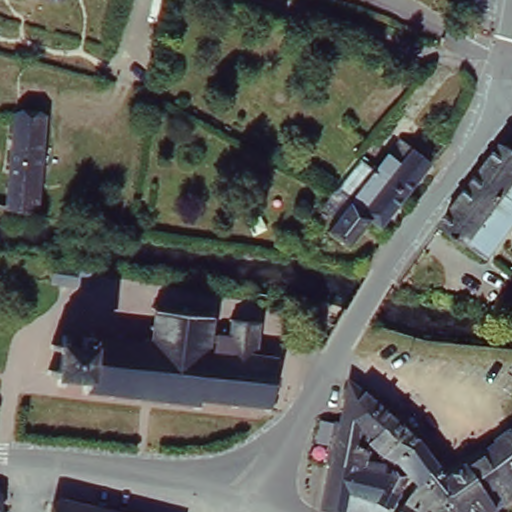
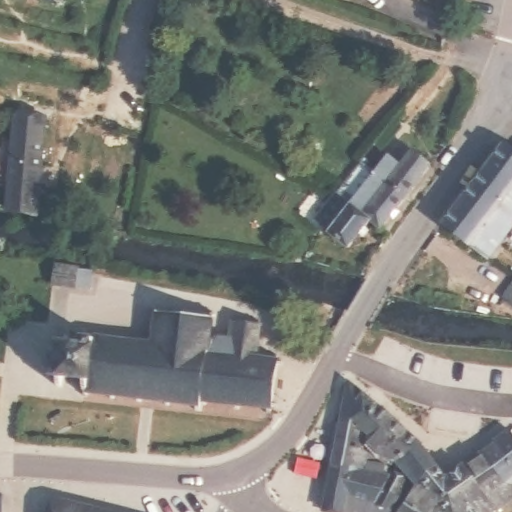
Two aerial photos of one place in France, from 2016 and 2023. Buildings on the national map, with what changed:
unchanged [(11,202),(18,113),(48,115),(41,208),(11,202)]
unchanged [(512,144),(512,217),(486,252),(441,219),(501,139),(512,144)]
unchanged [(390,176),(415,145),(443,168),(419,199),(390,176)]
unchanged [(342,236),(351,226),(335,213),(348,196),(374,163),(390,176),(419,199),(393,232),(383,224),(361,251),(342,236)]
unchanged [(341,222),(338,229),(331,225),(335,218),(341,222)]
unchanged [(91,269),(89,288),(51,282),(53,264),(91,269)]
unchanged [(91,269),(92,264),(104,266),(103,270),(91,269)]
unchanged [(512,279),(512,300),(502,293),(512,279)]
unchanged [(64,350),(54,349),(55,343),(66,345),(67,334),(71,334),(70,345),(87,347),(88,336),(95,337),(96,332),(99,333),(99,338),(121,340),(122,335),(127,335),(126,340),(147,342),(148,337),(152,338),(152,342),(156,344),(157,329),(153,329),(153,324),(157,324),(159,311),(156,307),(159,304),(163,308),(186,311),(187,306),(192,307),(192,311),(212,314),(217,310),(220,314),(216,317),(234,319),(234,317),(237,317),(237,315),(240,316),(240,318),(260,321),(261,318),(264,319),(263,321),(266,321),(266,324),(263,324),(259,357),(276,359),(276,354),(281,354),(281,359),(286,360),(285,364),(280,364),(276,401),(280,403),(279,407),(274,406),(273,411),(268,411),(269,405),(243,402),(241,407),(237,406),(238,401),(210,398),(209,403),(205,403),(204,409),(198,408),(199,401),(173,398),(173,404),(169,403),(169,398),(145,395),(144,400),(139,399),(140,395),(117,392),(117,397),(112,397),(113,392),(91,389),(90,394),(88,394),(88,388),(85,388),(87,378),(66,375),(65,386),(60,385),(61,375),(51,374),(52,368),(62,370),(64,350)]
unchanged [(346,510),(321,503),(330,457),(324,456),(333,415),(338,417),(347,376),(378,402),(392,414),(419,436),(420,437),(395,454),(382,446),(371,434),(363,439),(376,450),(375,456),(383,458),(381,465),(389,467),(405,476),(397,490),(390,503),(384,512),(354,512),(346,510)]
unchanged [(482,445),(494,437),(494,435),(508,424),(512,431),(512,491),(512,492),(482,512),(393,512),(415,478),(395,454),(420,437),(435,460),(444,473),(464,459),(482,445)]
unchanged [(3,491),(2,512),(0,512),(0,490),(3,491)]
unchanged [(55,499),(108,512),(52,512),(55,499)]

